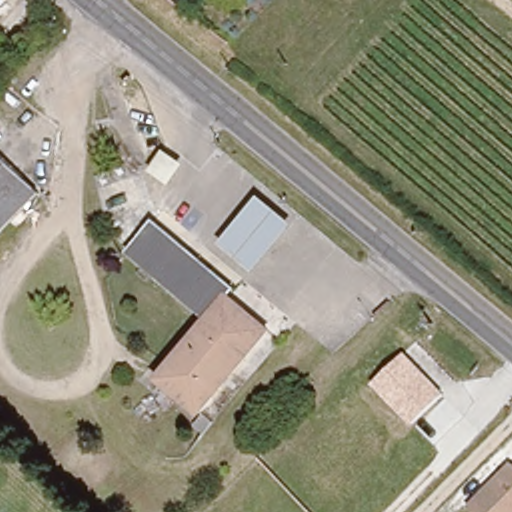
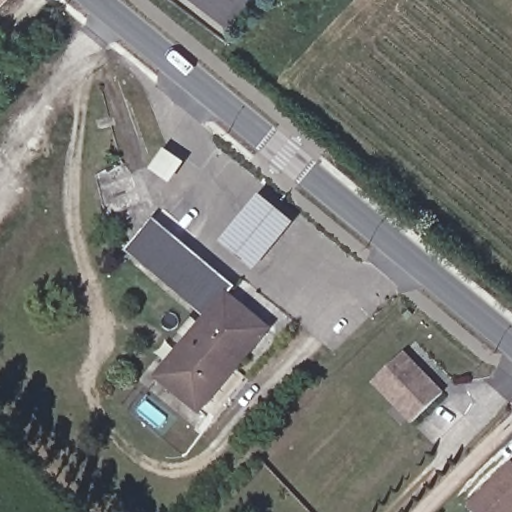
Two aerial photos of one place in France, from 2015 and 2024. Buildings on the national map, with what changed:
new [(0,0),(7,0),(0,8),(0,0)]
unchanged [(187,164),(172,185),(150,172),(167,148),(187,164)]
demolished [(0,232),(0,152),(40,190),(0,232)]
unchanged [(297,222),(257,273),(219,242),(259,196),(297,222)]
unchanged [(124,247),(149,218),(176,241),(151,270),(124,247)]
unchanged [(196,412),(156,378),(189,338),(206,317),(156,275),(182,245),(231,287),(224,295),(263,327),(226,373),(196,412)]
unchanged [(411,426),(372,384),(405,352),(444,394),(411,426)]
unchanged [(512,464),(512,512),(474,512),(470,508),(512,464)]

